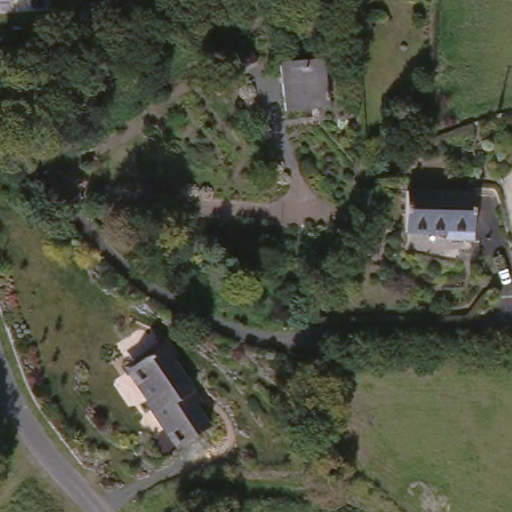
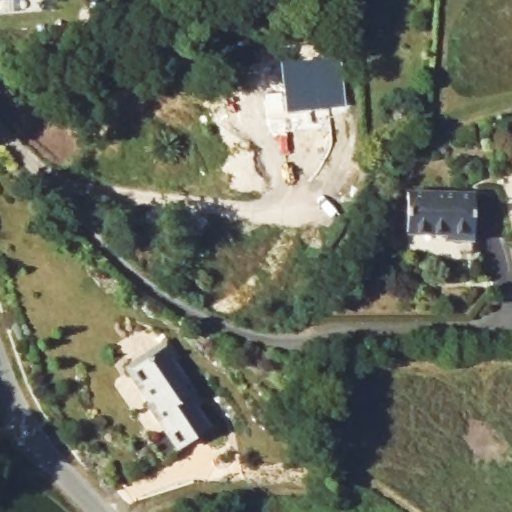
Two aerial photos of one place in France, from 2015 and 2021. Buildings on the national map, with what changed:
unchanged [(23,0),(0,2),(0,0),(23,0)]
unchanged [(329,106),(286,111),(282,66),(324,60),(329,106)]
unchanged [(404,226),(406,187),(473,191),(470,238),(450,236),(450,229),(404,226)]
unchanged [(146,406),(151,403),(131,371),(163,349),(192,394),(186,398),(207,429),(174,450),(146,406)]

